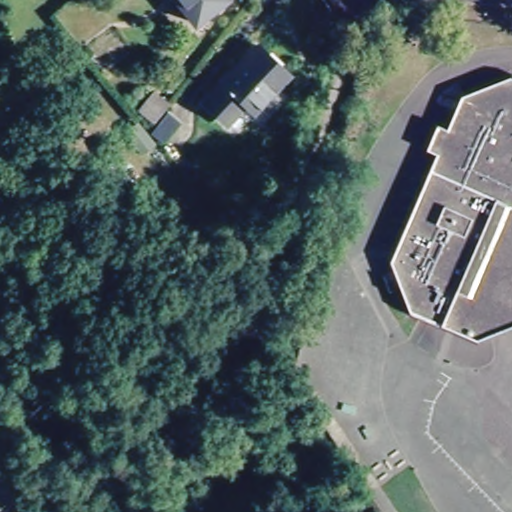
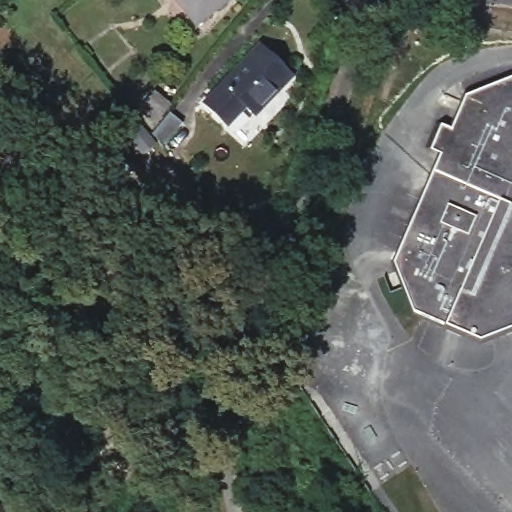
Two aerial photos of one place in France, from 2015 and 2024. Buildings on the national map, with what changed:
unchanged [(192,27),(173,0),(226,0),(227,1),(192,27)]
unchanged [(280,66),(293,80),(257,117),(246,107),(229,125),(204,101),(257,45),(280,66)]
unchanged [(479,341),(413,310),(387,259),(433,153),(414,146),(428,112),(447,120),(459,95),(506,84),(512,86),(512,329),(479,341)]
unchanged [(153,95),(172,108),(169,112),(183,126),(168,146),(135,117),(153,95)]

